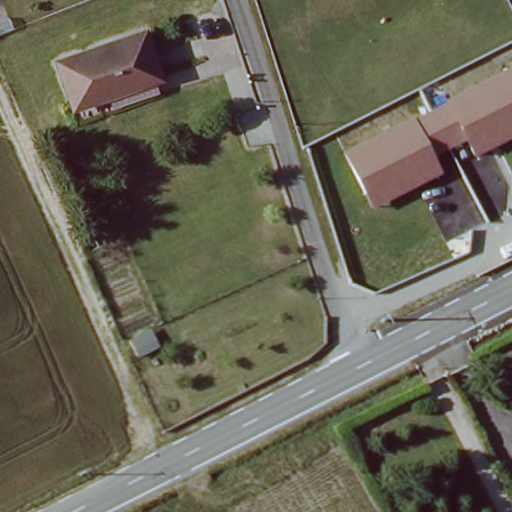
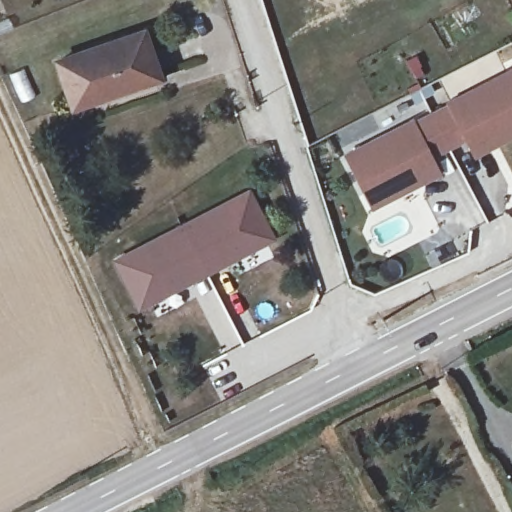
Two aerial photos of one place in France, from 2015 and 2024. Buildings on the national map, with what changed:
unchanged [(155,72),(87,92),(92,105),(70,111),(51,61),(139,29),(155,72)]
unchanged [(464,141),(433,157),(441,175),(374,210),(345,155),(512,67),(512,138),(475,157),(464,141)]
new [(250,186),(278,239),(206,277),(137,311),(110,259),(250,186)]

